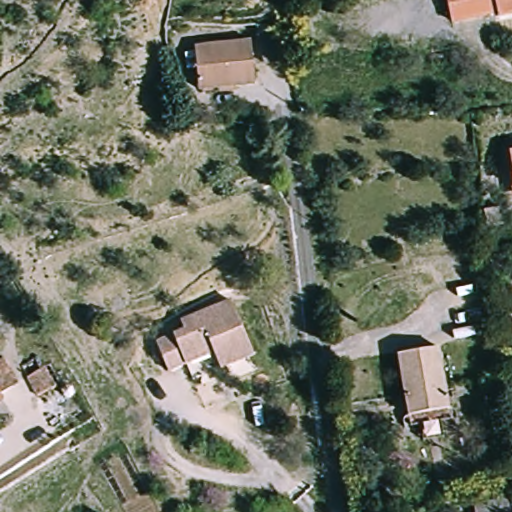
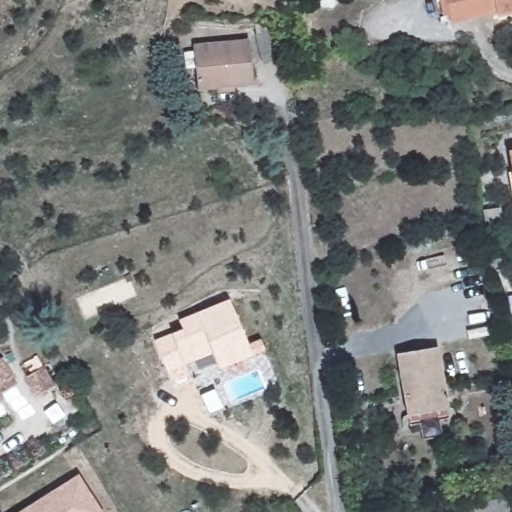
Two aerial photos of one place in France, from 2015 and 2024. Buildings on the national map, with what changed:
unchanged [(495,10),(494,5),(462,10),(466,0),(512,0),(512,8),(495,10)]
unchanged [(252,77),(199,87),(191,46),(245,37),(252,77)]
unchanged [(511,147),(512,147),(512,156),(511,147)]
unchanged [(165,368),(155,345),(186,331),(182,322),(230,301),(255,357),(222,370),(212,348),(185,360),(165,368)]
unchanged [(415,436),(413,421),(408,422),(396,346),(439,339),(450,414),(437,417),(439,433),(415,436)]
unchanged [(17,380),(1,391),(5,397),(0,400),(0,359),(4,356),(17,380)]
new [(103,512),(19,512),(78,474),(103,512)]
unchanged [(475,512),(475,508),(507,502),(508,512),(475,512)]

